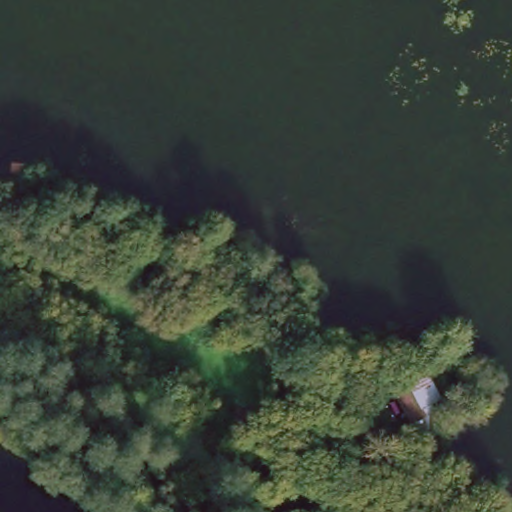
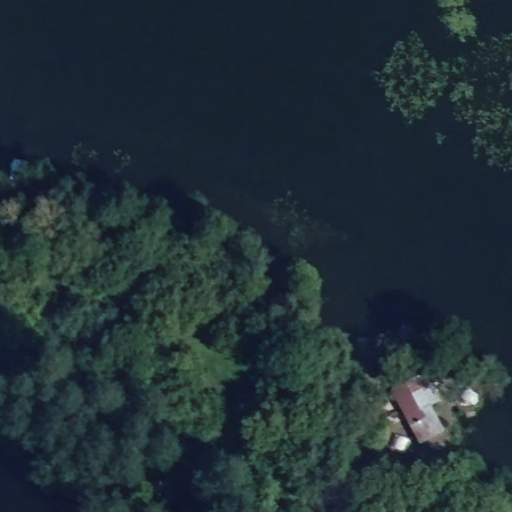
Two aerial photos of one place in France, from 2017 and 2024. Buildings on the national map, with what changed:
unchanged [(407,391),(401,383),(426,369),(442,395),(430,402),(449,436),(418,451),(395,400),(407,391)]

